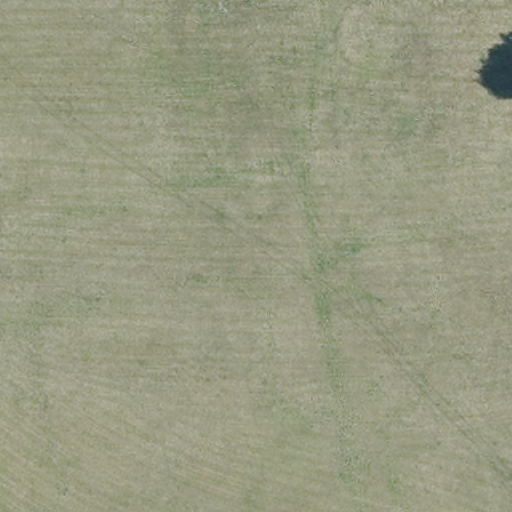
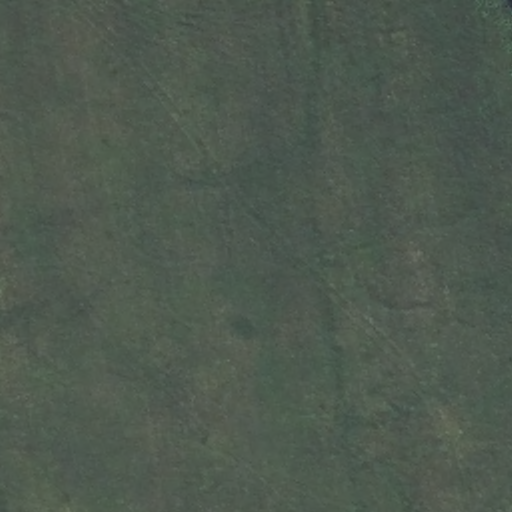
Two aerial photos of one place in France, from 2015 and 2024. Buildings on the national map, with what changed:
[]

